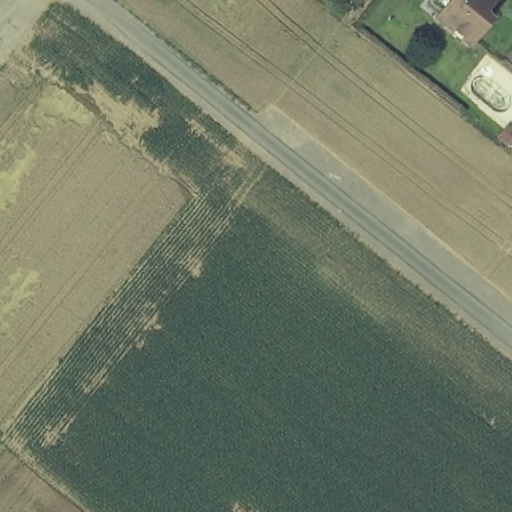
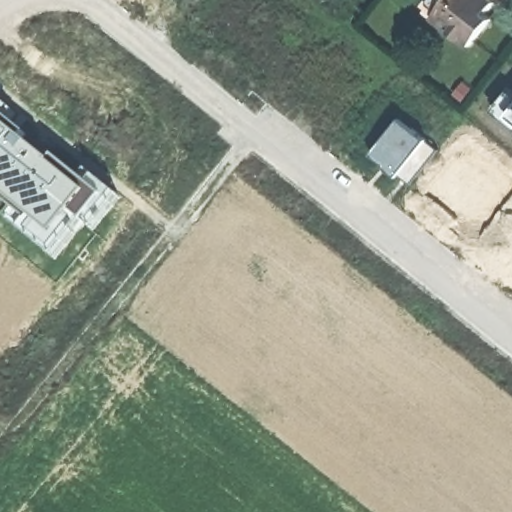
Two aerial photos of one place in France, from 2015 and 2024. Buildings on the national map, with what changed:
demolished [(502,22),(479,53),(422,8),(427,0),(489,0),(485,8),(502,22)]
new [(440,0),(487,0),(480,9),(486,14),(465,40),(430,13),(440,0)]
new [(512,94),(512,128),(495,116),(512,94)]
new [(78,173),(87,164),(121,193),(92,226),(77,218),(53,251),(0,208),(0,95),(78,173)]
new [(434,148),(407,179),(372,154),(400,121),(434,148)]
new [(506,132),(512,137),(507,142),(502,138),(506,132)]

